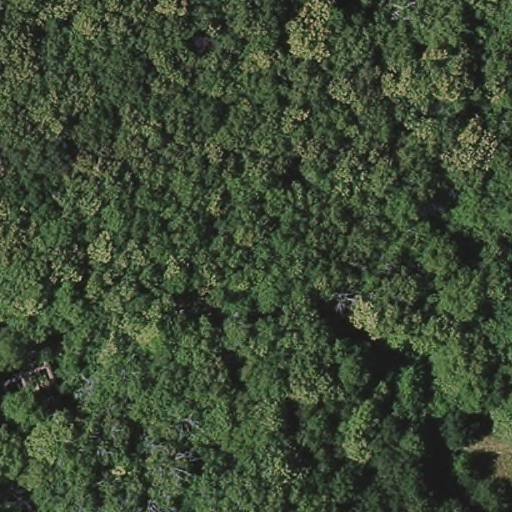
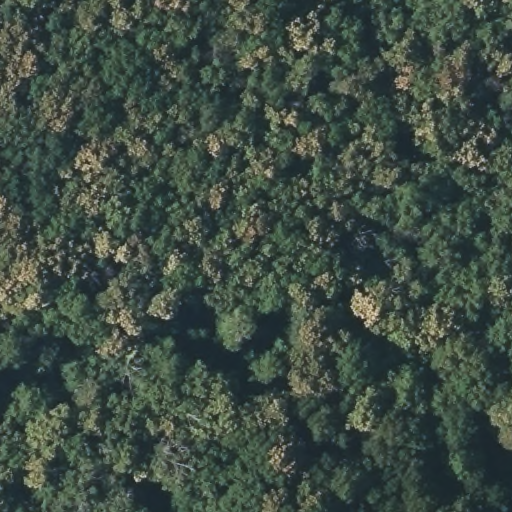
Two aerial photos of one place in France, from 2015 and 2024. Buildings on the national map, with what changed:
[]

